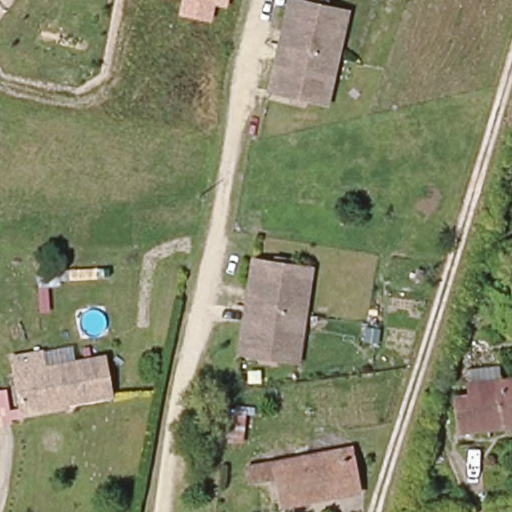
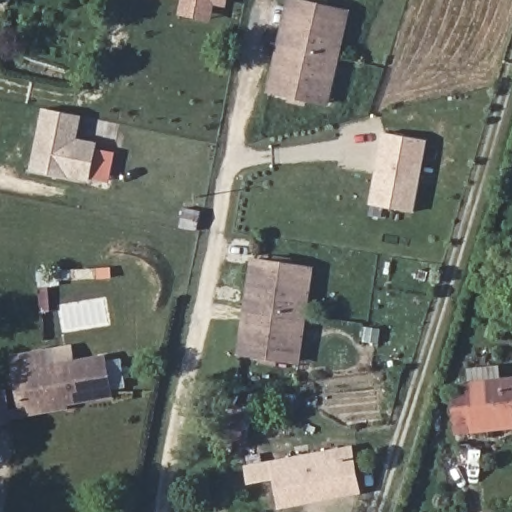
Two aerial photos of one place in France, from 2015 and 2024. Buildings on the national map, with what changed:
unchanged [(215,5),(210,21),(177,14),(182,0),(227,0),(226,6),(215,5)]
unchanged [(300,0),(349,10),(330,98),(273,87),(292,0),(300,0)]
new [(30,169),(42,109),(82,116),(78,139),(96,141),(88,181),(30,169)]
new [(423,142),(413,211),(371,205),(382,135),(423,142)]
unchanged [(249,258),(309,260),(305,354),(245,351),(249,258)]
unchanged [(13,364),(40,359),(42,372),(101,362),(106,397),(21,414),(13,364)]
unchanged [(481,442),(462,445),(458,408),(473,406),(470,388),(467,371),(497,367),(500,384),(512,382),(512,426),(480,430),(481,442)]
unchanged [(0,425),(0,389),(6,388),(14,422),(0,425)]
unchanged [(282,507),(277,484),(251,488),(249,473),(353,452),(361,492),(282,507)]

